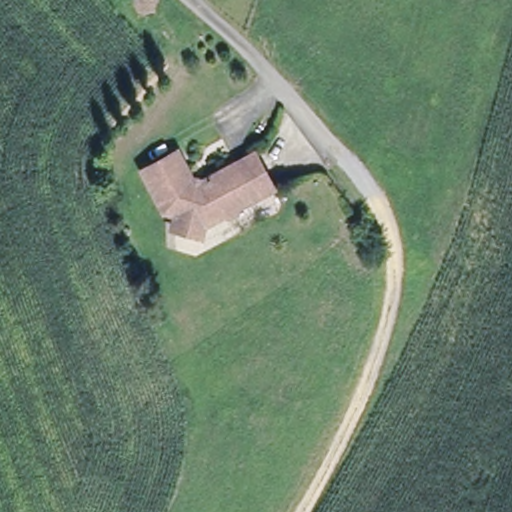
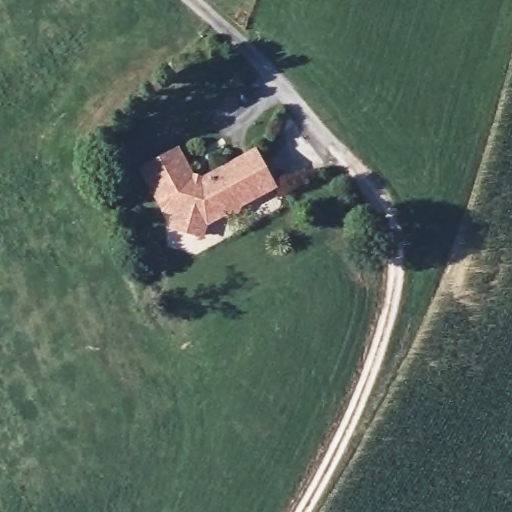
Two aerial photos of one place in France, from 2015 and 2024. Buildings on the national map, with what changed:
unchanged [(241,211),(229,217),(227,213),(201,226),(199,233),(169,227),(171,211),(163,209),(141,168),(176,151),(190,178),(207,177),(235,163),(255,153),(275,188),(256,198),(241,206),(241,211)]

